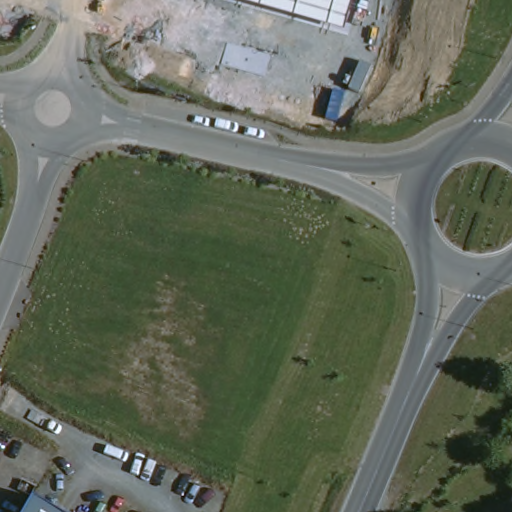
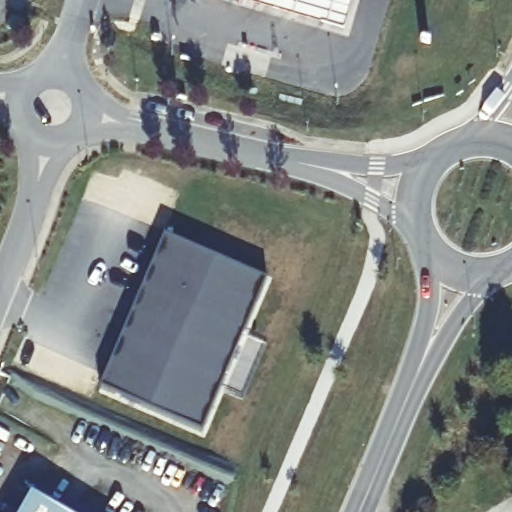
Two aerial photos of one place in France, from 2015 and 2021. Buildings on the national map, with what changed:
unchanged [(353,7),(346,35),(218,0),(329,0),(353,7)]
new [(161,236),(265,277),(204,432),(100,391),(161,236)]
unchanged [(64,512),(19,512),(30,493),(64,512)]

